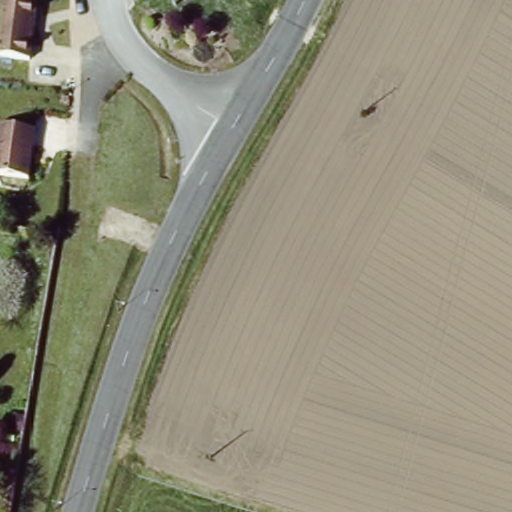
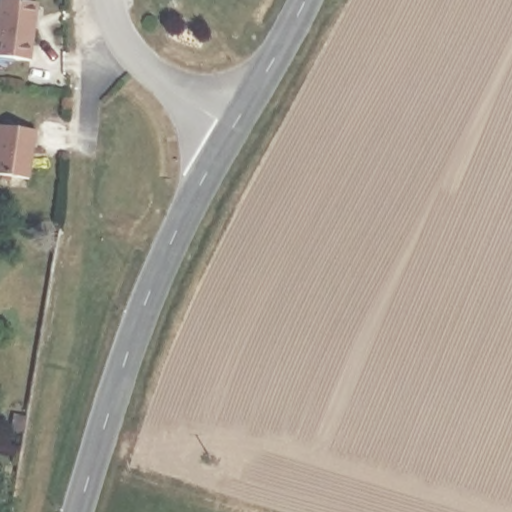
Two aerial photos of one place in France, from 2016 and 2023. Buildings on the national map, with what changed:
unchanged [(32,61),(0,57),(0,0),(7,0),(39,4),(32,61)]
unchanged [(30,179),(0,175),(0,126),(37,131),(30,179)]

